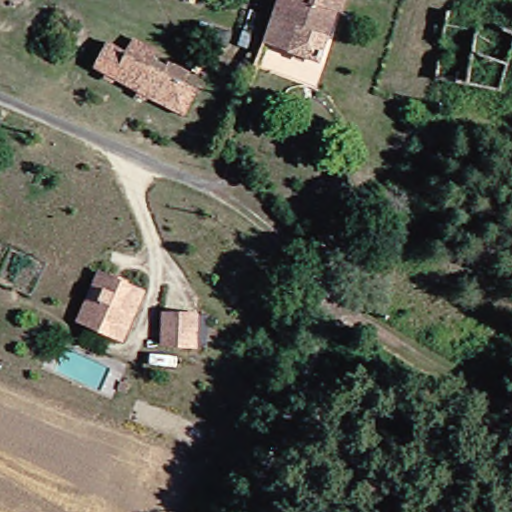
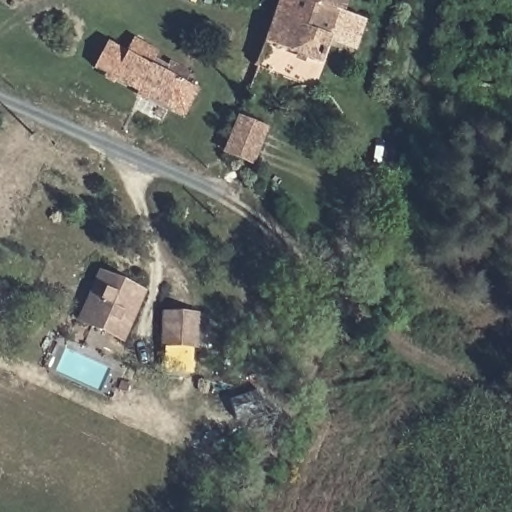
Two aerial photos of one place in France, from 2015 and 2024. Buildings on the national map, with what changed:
unchanged [(343,16),(325,69),(266,55),(270,42),(275,44),(281,21),(287,0),(355,0),(349,17),(343,16)]
unchanged [(112,42),(152,64),(154,60),(204,84),(190,111),(100,65),(112,42)]
new [(253,166),(221,153),(237,115),(269,127),(253,166)]
unchanged [(77,320),(81,311),(97,272),(140,291),(123,327),(119,337),(77,320)]
unchanged [(198,345),(166,345),(166,315),(198,315),(198,345)]

